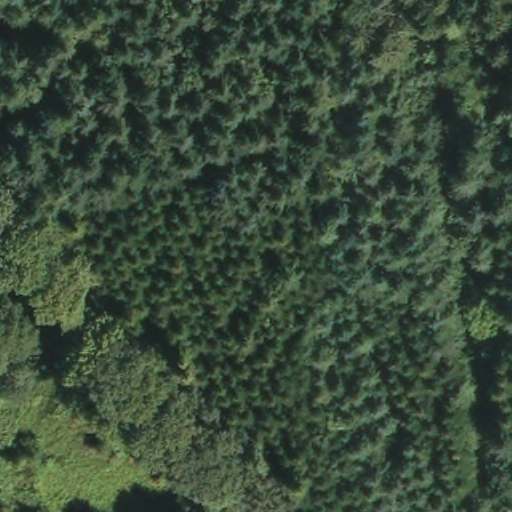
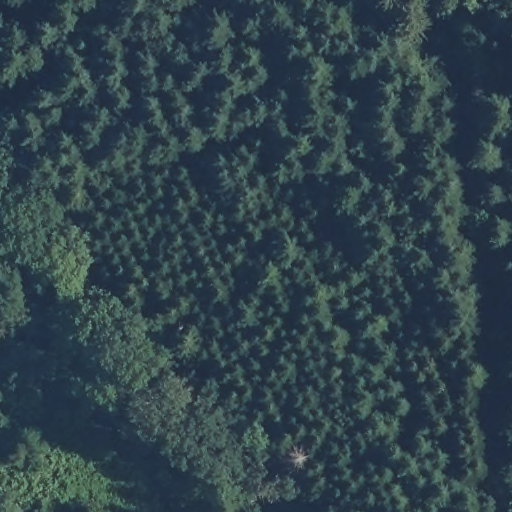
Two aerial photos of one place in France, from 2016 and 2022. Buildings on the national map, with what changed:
[]

